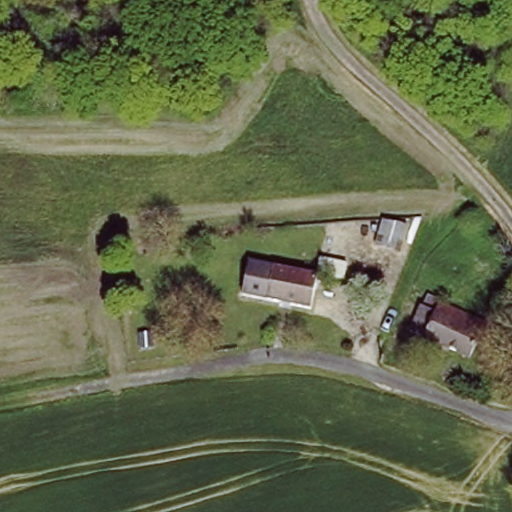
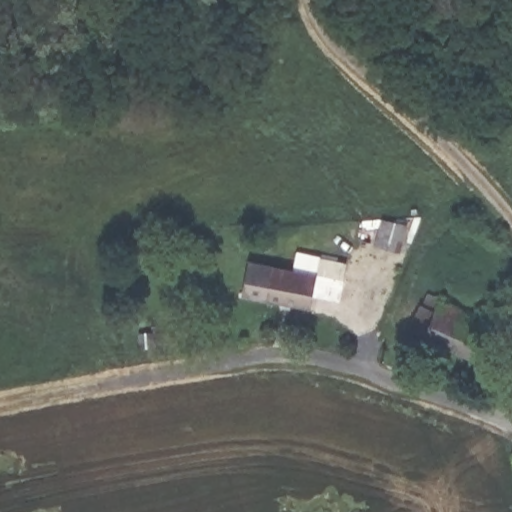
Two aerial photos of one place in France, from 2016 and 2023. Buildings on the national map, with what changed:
unchanged [(247,266),(304,274),(307,256),(320,258),(321,245),(347,249),(345,262),(342,280),(317,276),(312,307),(242,296),(247,266)]
unchanged [(480,347),(470,343),(462,358),(405,331),(417,307),(432,314),(437,303),(489,328),(480,347)]

